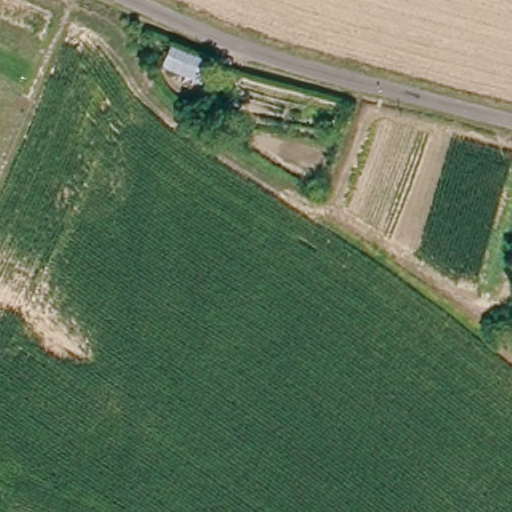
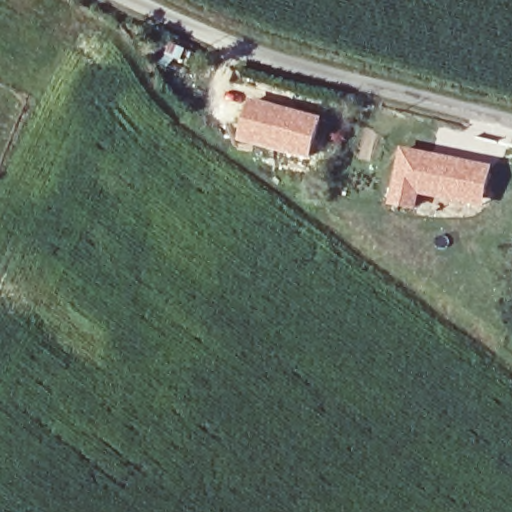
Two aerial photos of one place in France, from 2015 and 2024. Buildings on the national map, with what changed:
unchanged [(180,77),(184,69),(165,60),(175,38),(213,56),(203,77),(199,86),(180,77)]
new [(254,97),(325,116),(312,160),(241,141),(254,97)]
new [(403,146),(494,165),(483,210),(421,196),(418,211),(392,206),(403,146)]

